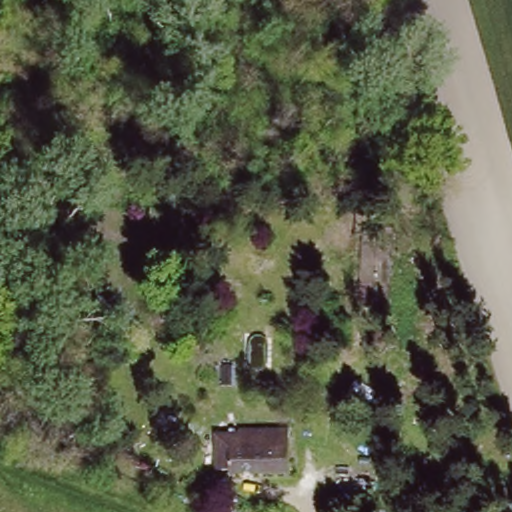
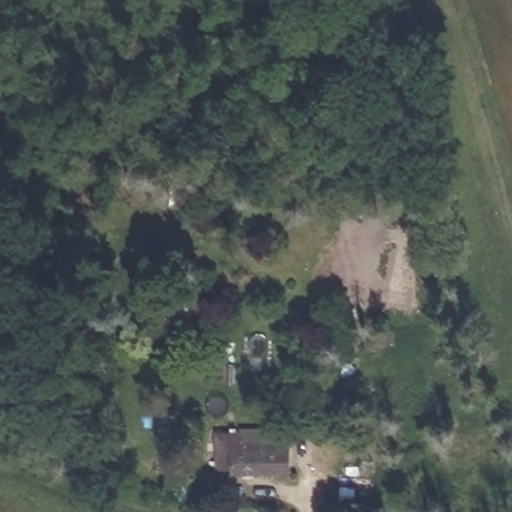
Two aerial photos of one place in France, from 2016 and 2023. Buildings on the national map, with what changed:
unchanged [(214,449),(217,449),(224,449),(224,443),(285,442),(285,443),(288,443),(289,466),(225,467),(224,461),(212,461),(214,449)]

